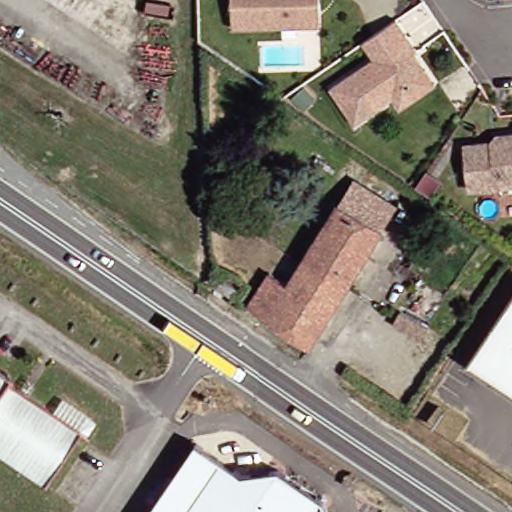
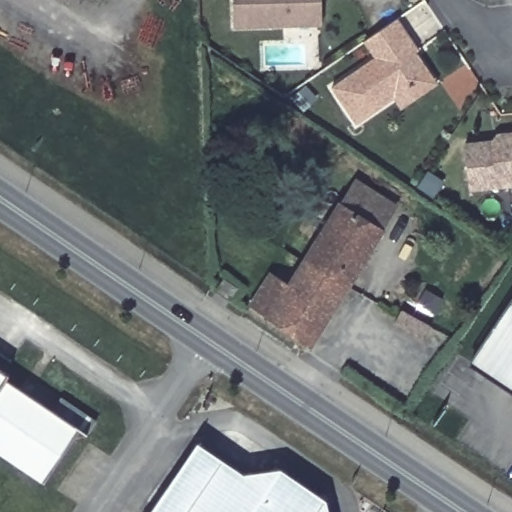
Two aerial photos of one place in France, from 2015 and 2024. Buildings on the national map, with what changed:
unchanged [(228,30),(228,0),(315,0),(315,11),(316,28),(298,28),(228,30)]
unchanged [(399,111),(392,101),(355,127),(330,91),(374,61),(362,45),(395,22),(417,54),(414,55),(435,87),(399,111)]
unchanged [(463,148),(491,145),(496,138),(507,137),(512,136),(512,187),(468,192),(463,148)]
unchanged [(340,208),(356,184),(399,212),(384,236),(340,208)]
unchanged [(249,311),(270,279),(287,290),(340,208),(384,236),(310,353),(249,311)]
unchanged [(231,297),(218,288),(224,280),(236,288),(231,297)]
unchanged [(512,301),(512,393),(469,365),(512,301)]
unchanged [(413,338),(392,324),(401,310),(422,324),(413,338)]
unchanged [(11,377),(8,381),(81,431),(44,485),(0,454),(0,369),(11,377)]
unchanged [(283,472),(326,501),(328,512),(154,512),(198,448),(245,479),(283,472)]

